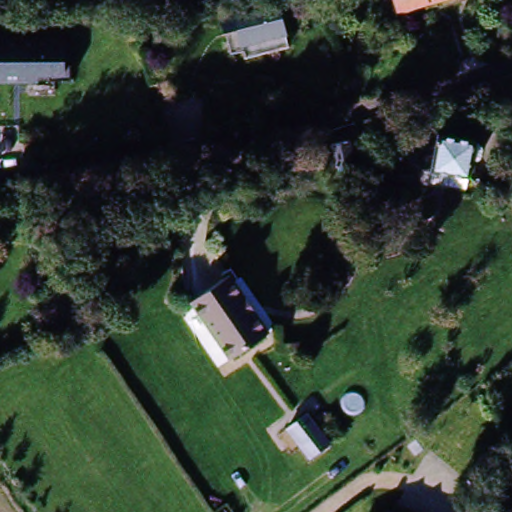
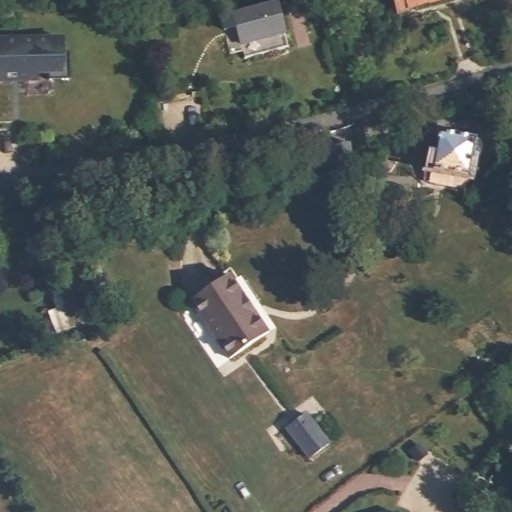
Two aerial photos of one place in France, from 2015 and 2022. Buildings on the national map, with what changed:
unchanged [(397,16),(391,0),(453,0),(397,16)]
unchanged [(288,7),(296,38),(253,49),(251,44),(238,47),(231,21),(288,7)]
unchanged [(63,37),(63,51),(70,51),(71,78),(51,78),(50,71),(38,71),(39,79),(0,80),(0,39),(63,37)]
unchanged [(430,180),(432,167),(440,131),(476,138),(476,142),(480,143),(483,147),(481,156),(477,159),(473,159),(470,174),(467,187),(430,180)]
unchanged [(350,141),(353,163),(336,165),(333,143),(350,141)]
unchanged [(231,273),(267,331),(228,357),(191,297),(231,273)]
unchanged [(68,302),(78,321),(65,329),(54,310),(68,302)]
unchanged [(307,410),(329,439),(311,454),(288,425),(307,410)]

